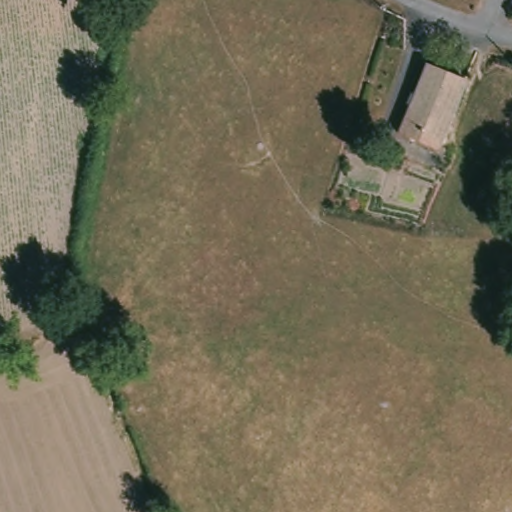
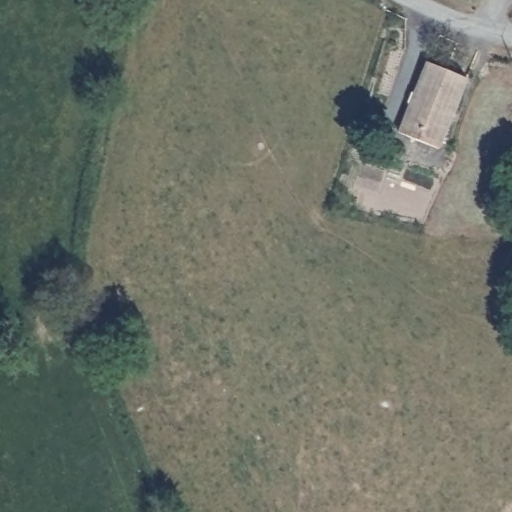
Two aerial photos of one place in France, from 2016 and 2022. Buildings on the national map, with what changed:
unchanged [(438,150),(398,133),(426,64),(466,80),(438,150)]

